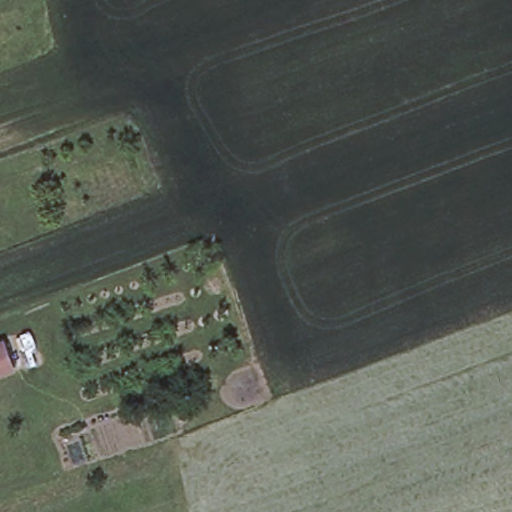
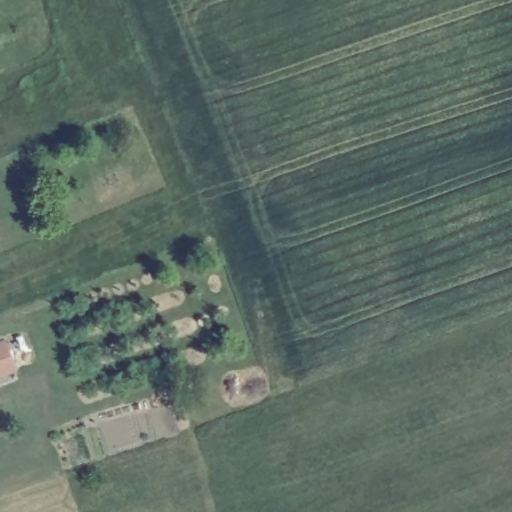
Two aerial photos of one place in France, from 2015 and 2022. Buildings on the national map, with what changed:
unchanged [(0,360),(0,343),(1,343),(7,358),(10,368),(0,372),(0,360)]

